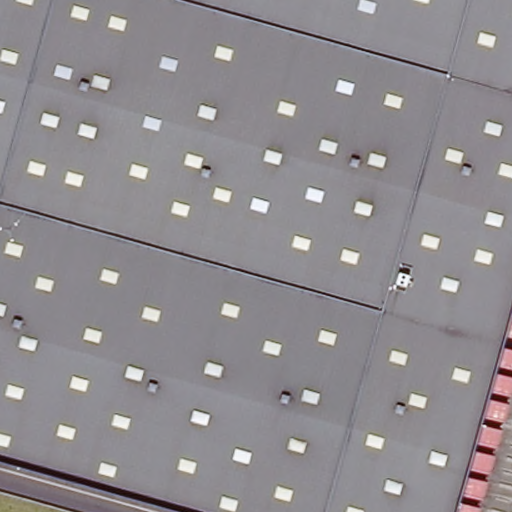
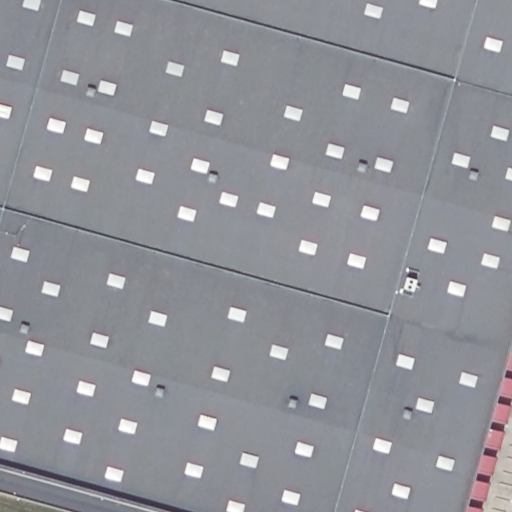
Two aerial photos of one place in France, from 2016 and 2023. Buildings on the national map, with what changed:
unchanged [(512,327),(509,338),(512,339),(512,359),(504,357),(502,365),(512,367),(512,376),(509,386),(497,382),(494,390),(507,393),(502,412),(490,408),(487,416),(500,419),(495,437),(482,433),(480,444),(492,447),(487,465),(475,461),(472,468),(485,471),(480,489),(467,485),(465,493),(479,496),(474,512),(464,512),(460,511),(460,512),(241,512),(0,445),(0,0),(512,0),(512,327)]

